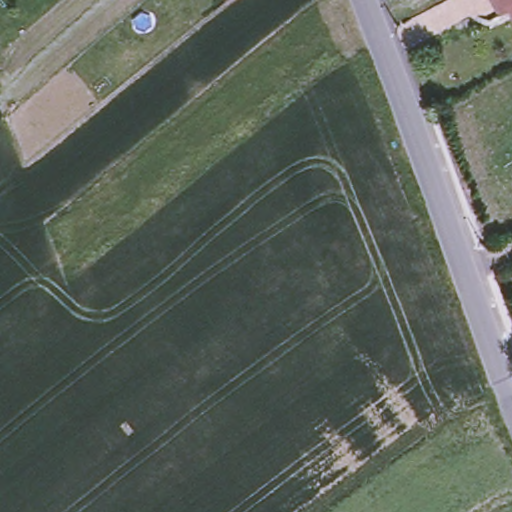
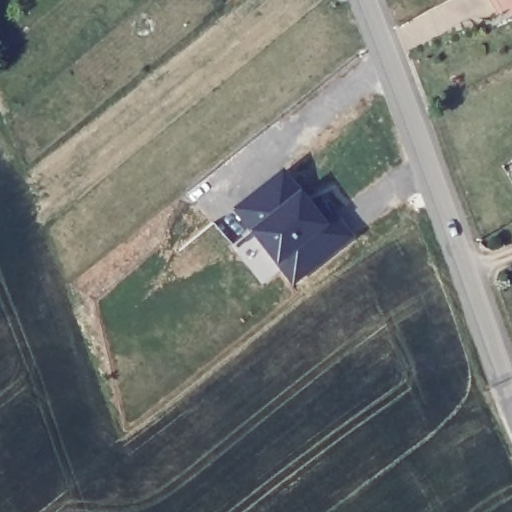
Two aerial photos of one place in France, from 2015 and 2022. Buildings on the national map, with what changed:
unchanged [(512,5),(505,8),(501,0),(512,0),(512,5)]
new [(292,284),(231,207),(283,166),(323,217),(333,209),(353,236),(292,284)]

